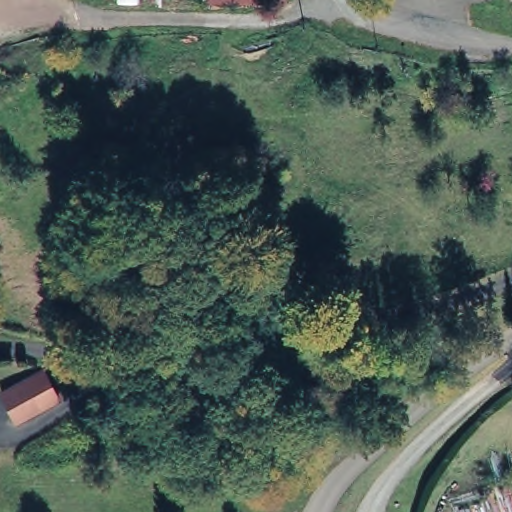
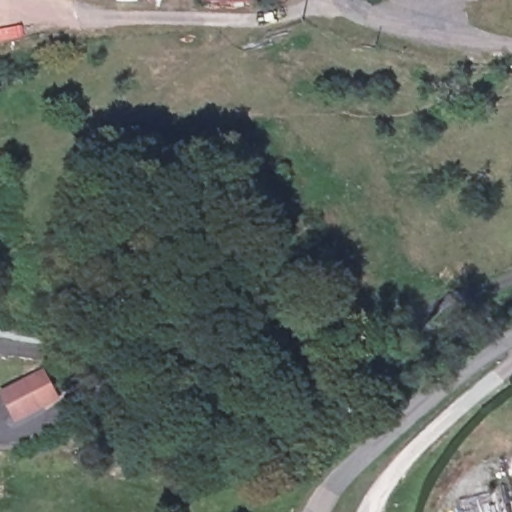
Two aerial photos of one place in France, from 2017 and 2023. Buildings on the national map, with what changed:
unchanged [(286,0),(201,4),(200,0),(286,0)]
unchanged [(0,395),(0,389),(45,367),(62,399),(16,423),(0,395)]

